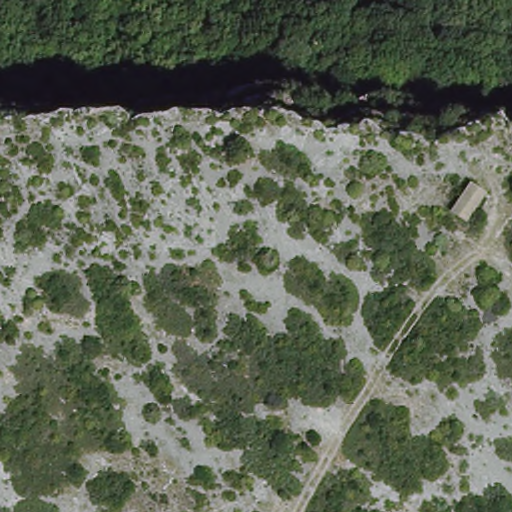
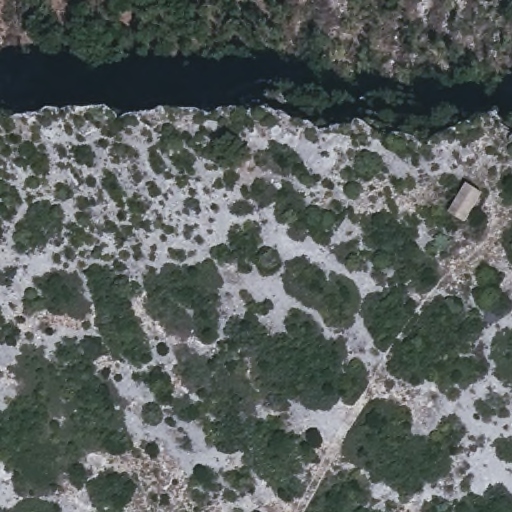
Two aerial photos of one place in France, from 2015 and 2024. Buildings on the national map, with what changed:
unchanged [(465,181),(482,194),(461,223),(445,212),(465,181)]

